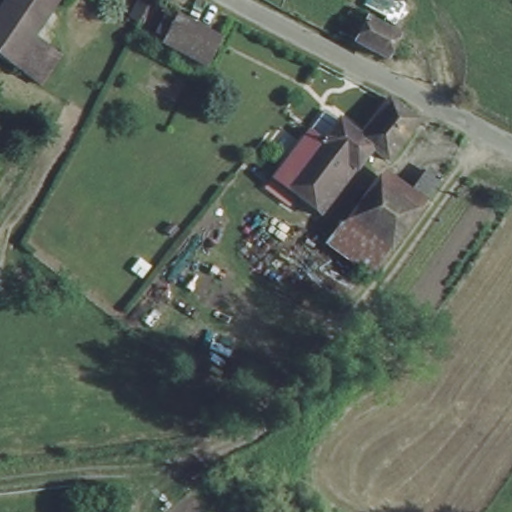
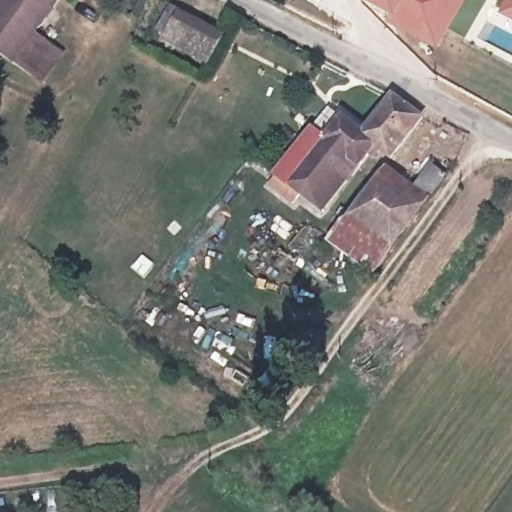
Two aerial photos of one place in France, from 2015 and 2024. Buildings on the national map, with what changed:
unchanged [(39,28),(10,67),(0,60),(0,10),(7,0),(60,0),(39,28)]
new [(438,48),(386,20),(390,13),(365,0),(464,0),(438,48)]
unchanged [(210,67),(163,45),(178,17),(223,40),(210,67)]
unchanged [(403,34),(392,59),(354,39),(365,17),(403,34)]
unchanged [(68,51),(40,90),(10,67),(39,28),(68,51)]
unchanged [(367,137),(399,101),(426,121),(395,157),(379,147),(367,137)]
unchanged [(322,214),(282,185),(323,136),(339,117),(358,131),(367,137),(379,147),(322,214)]
unchanged [(357,209),(386,171),(407,184),(422,162),(442,175),(437,186),(429,198),(401,241),(357,209)]
unchanged [(401,241),(380,271),(336,238),(357,209),(401,241)]

